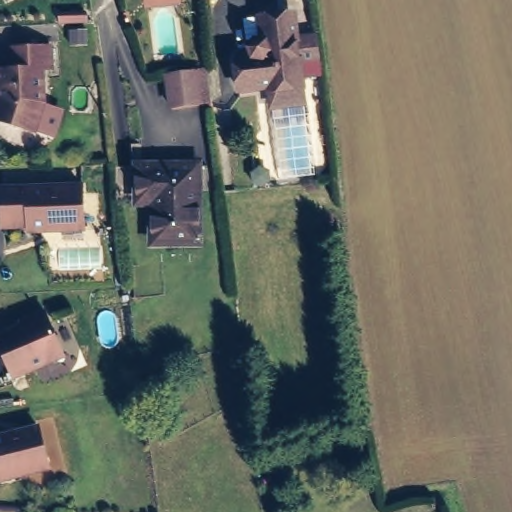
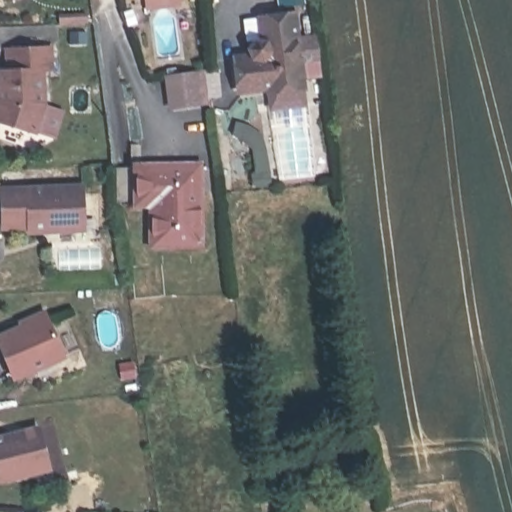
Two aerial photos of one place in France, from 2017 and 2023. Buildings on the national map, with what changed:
unchanged [(244,45),(250,37),(259,40),(256,19),(289,15),(291,35),(309,32),(314,70),(296,71),(300,100),(270,105),(267,102),(264,84),(235,87),(230,55),(249,52),(244,45)]
unchanged [(4,99),(4,88),(2,88),(0,71),(11,70),(10,50),(52,47),(54,70),(45,70),(46,104),(37,132),(1,121),(0,119),(0,104),(2,99),(4,99)]
unchanged [(175,108),(171,75),(207,70),(212,103),(175,108)]
unchanged [(200,167),(205,209),(201,240),(152,240),(150,201),(117,201),(112,166),(199,167),(200,167)]
unchanged [(84,187),(86,230),(32,232),(31,227),(5,228),(4,190),(84,187)]
unchanged [(29,320),(47,312),(65,357),(15,378),(0,344),(0,337),(30,325),(29,320)]
unchanged [(49,470),(0,482),(0,439),(40,429),(49,470)]

